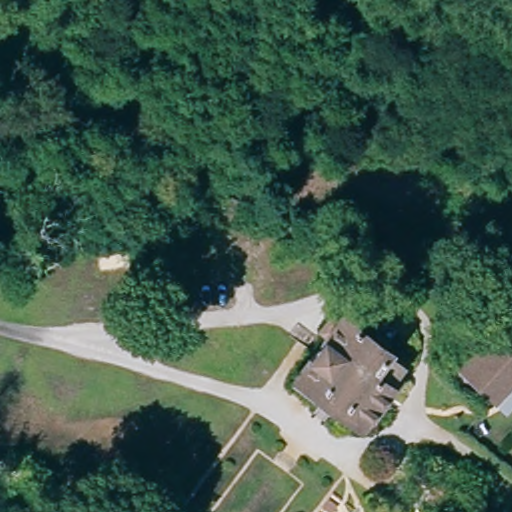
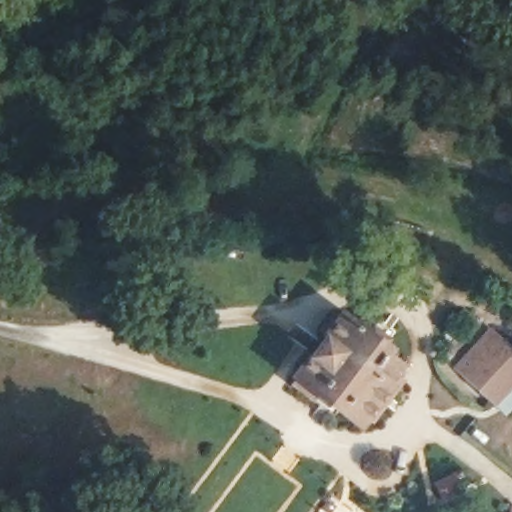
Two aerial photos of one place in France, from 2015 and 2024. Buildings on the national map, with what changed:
unchanged [(373,408),(378,412),(364,431),(356,429),(294,379),(320,342),(314,335),(325,322),(334,325),(335,323),(363,341),(369,336),(385,347),(379,354),(401,369),(373,408)]
unchanged [(512,358),(480,393),(454,369),(486,333),(512,358)]

